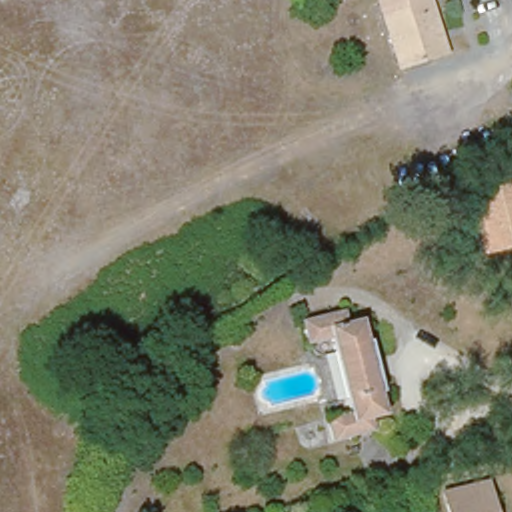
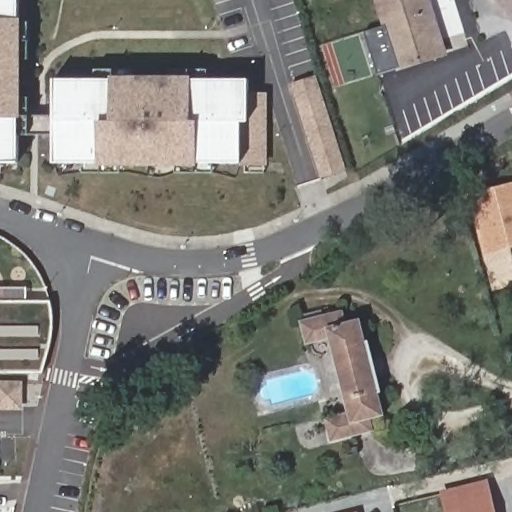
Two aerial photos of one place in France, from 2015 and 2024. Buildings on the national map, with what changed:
new [(241,162),(197,162),(197,165),(98,165),(98,161),(53,162),(53,136),(19,136),(19,160),(0,161),(0,0),(19,0),(19,19),(22,19),(23,116),(55,116),(54,80),(112,81),(112,76),(193,76),(193,80),(248,80),(248,91),(267,90),(267,165),(241,162)]
unchanged [(380,0),(431,0),(446,50),(399,65),(380,0)]
new [(347,169),(319,177),(290,83),(316,75),(347,169)]
unchanged [(512,181),(512,237),(480,245),(465,195),(512,181)]
new [(512,286),(492,291),(480,245),(512,237),(512,286)]
new [(28,297),(28,311),(0,311),(0,297),(28,297)]
unchanged [(317,412),(337,407),(320,332),(297,338),(291,317),(334,305),(337,319),(350,315),(356,339),(359,338),(371,386),(368,387),(373,409),(361,412),(363,423),(322,433),(317,412)]
new [(28,311),(52,311),(53,325),(51,343),(43,372),(0,372),(0,311),(28,311)]
new [(0,410),(0,380),(23,380),(23,410),(0,410)]
unchanged [(481,478),(490,508),(484,510),(484,512),(445,512),(439,490),(481,478)]
unchanged [(409,512),(398,512),(408,510),(409,512)]
new [(359,512),(356,512),(358,511),(359,512)]

